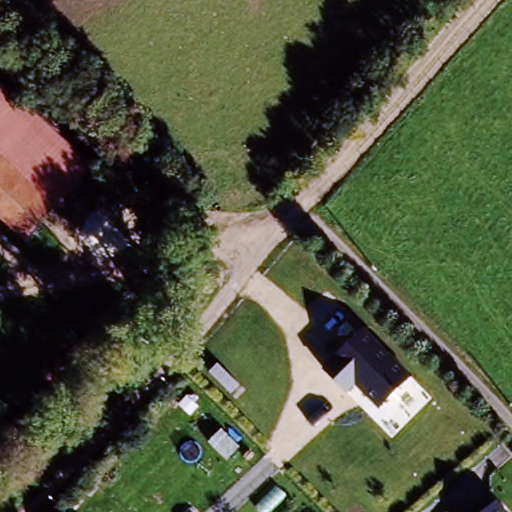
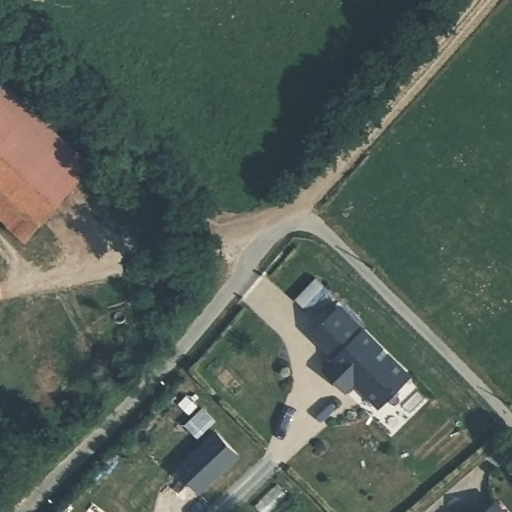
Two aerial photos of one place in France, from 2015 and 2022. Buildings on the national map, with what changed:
unchanged [(90,170),(74,185),(0,113),(0,86),(1,84),(90,170)]
unchanged [(26,235),(0,209),(0,113),(74,185),(26,235)]
unchanged [(158,340),(138,361),(112,338),(57,399),(41,384),(111,304),(158,340)]
unchanged [(335,359),(314,334),(344,308),(412,376),(378,409),(354,386),(346,393),(323,368),(335,359)]
new [(218,432),(241,454),(204,492),(181,469),(218,432)]
unchanged [(506,512),(479,512),(493,499),(506,512)]

